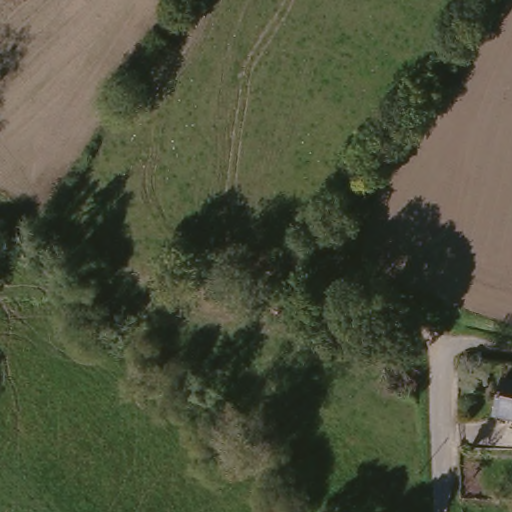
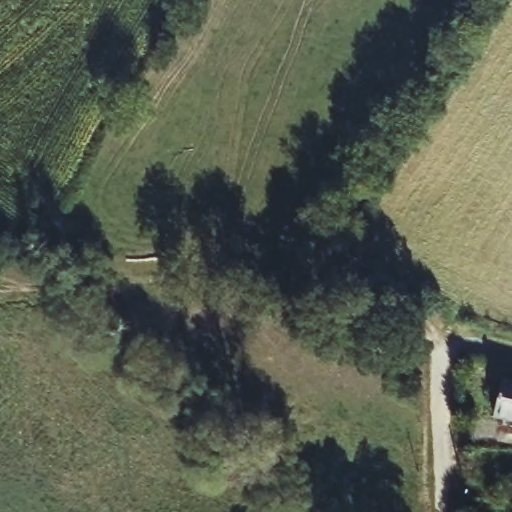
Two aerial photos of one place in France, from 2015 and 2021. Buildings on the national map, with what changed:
unchanged [(501,382),(512,385),(512,430),(493,426),(501,382)]

